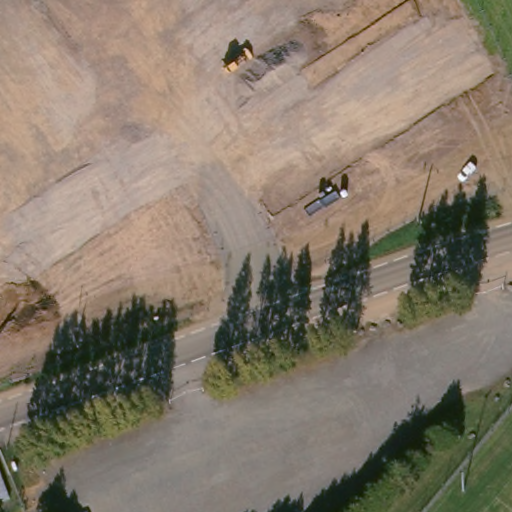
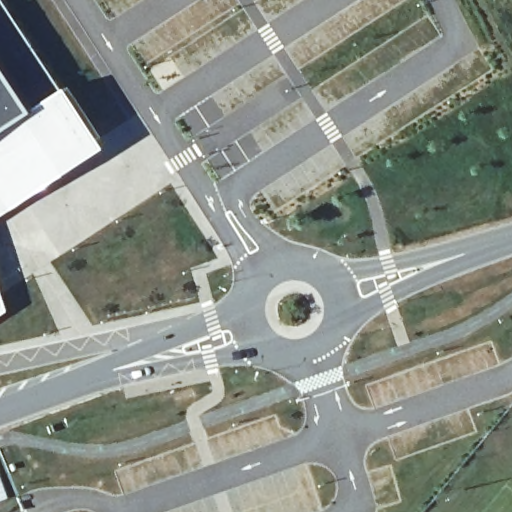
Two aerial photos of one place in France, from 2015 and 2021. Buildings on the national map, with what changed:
new [(7,0),(66,89),(72,86),(110,145),(70,171),(13,209),(0,217),(0,0),(7,0)]
new [(9,309),(0,315),(0,280),(9,309)]
unchanged [(0,501),(0,454),(5,452),(21,493),(0,501)]

